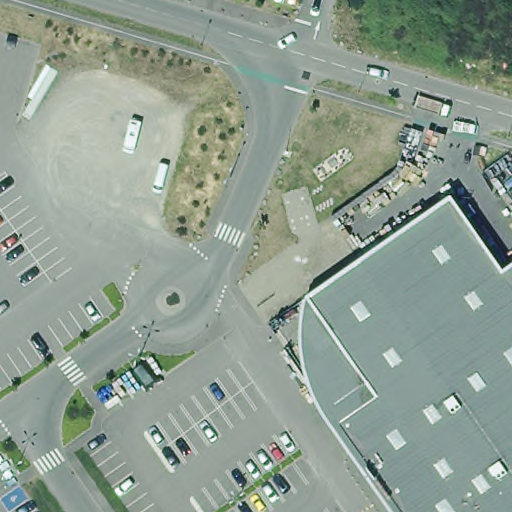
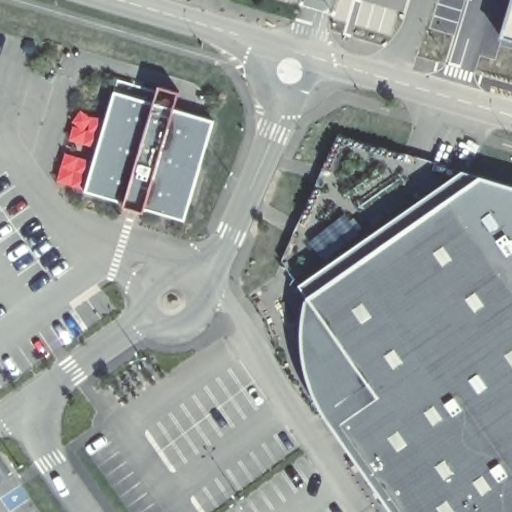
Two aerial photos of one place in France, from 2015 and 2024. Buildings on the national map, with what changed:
new [(512,0),(512,41),(499,36),(510,0),(512,0)]
new [(114,91),(153,103),(158,86),(179,92),(174,110),(213,121),(184,221),(145,209),(143,213),(123,207),(124,203),(84,191),(114,91)]
new [(301,286),(464,171),(481,176),(512,186),(512,270),(506,275),(454,199),(312,297),(311,300),(301,286)]
unchanged [(506,275),(512,270),(512,512),(392,512),(389,508),(361,466),(336,432),(323,412),(313,388),(305,355),(305,324),(309,302),(312,297),(454,199),(506,275)]

